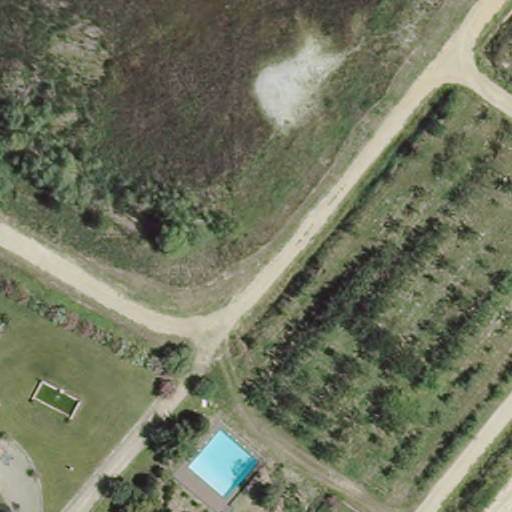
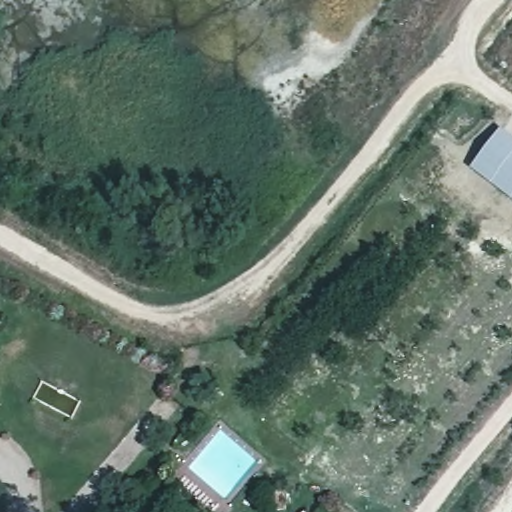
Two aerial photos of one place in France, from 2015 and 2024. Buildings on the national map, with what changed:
new [(512,136),(512,198),(469,165),(500,127),(512,136)]

